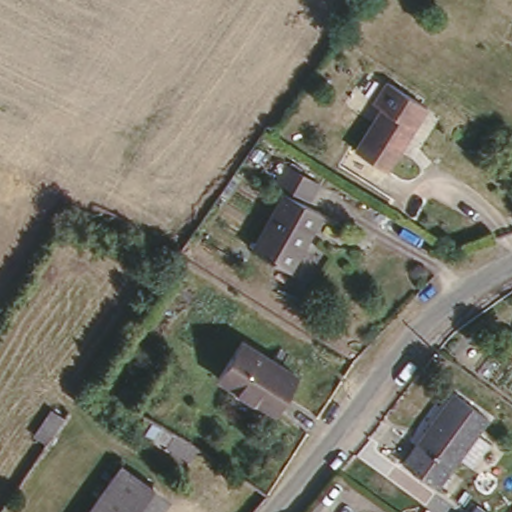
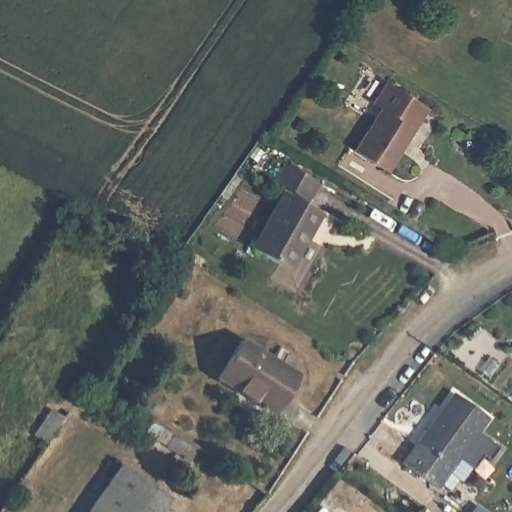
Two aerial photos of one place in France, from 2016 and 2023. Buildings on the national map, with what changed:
unchanged [(423,109),(380,170),(349,148),(377,108),(369,102),(383,81),(423,109)]
unchanged [(285,178),(295,161),(334,184),(324,200),(285,178)]
unchanged [(289,266),(247,242),(279,188),(319,212),(289,266)]
unchanged [(279,412),(216,378),(239,340),(300,374),(279,412)]
unchanged [(490,414),(437,489),(401,464),(452,390),(490,414)]
unchanged [(160,512),(88,512),(115,466),(169,497),(160,512)]

